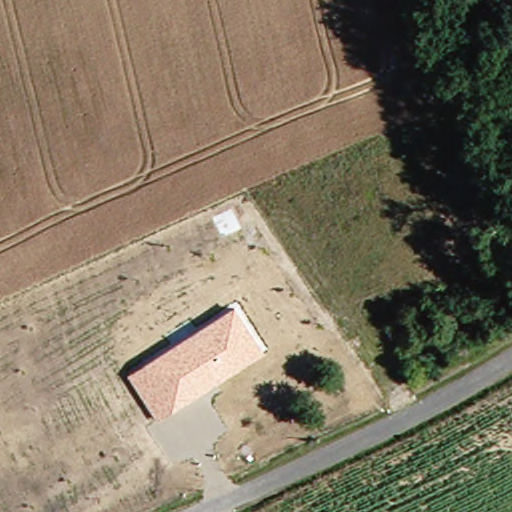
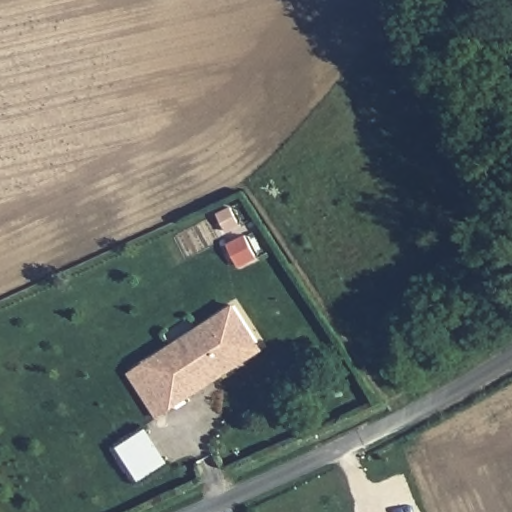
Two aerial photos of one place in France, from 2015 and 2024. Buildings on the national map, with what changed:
unchanged [(158,420),(128,375),(236,305),(265,351),(158,420)]
new [(170,463),(140,482),(118,448),(148,429),(170,463)]

